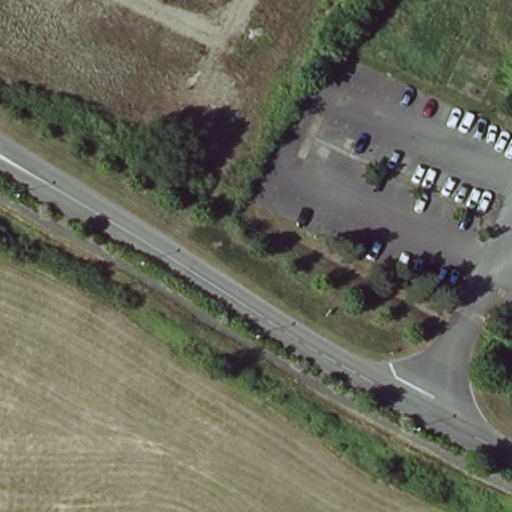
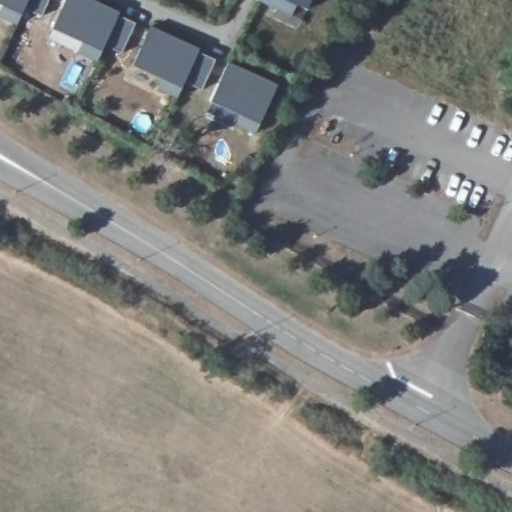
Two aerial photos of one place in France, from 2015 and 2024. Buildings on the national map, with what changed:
new [(41,17),(23,7),(16,24),(0,17),(0,8),(1,5),(0,5),(0,0),(49,0),(41,17)]
new [(66,0),(93,0),(120,11),(118,15),(135,22),(121,53),(103,45),(96,60),(78,53),(82,41),(53,28),(66,0)]
new [(258,0),(309,0),(303,12),(294,8),(290,16),(258,0)]
new [(151,26),(199,47),(197,51),(213,58),(201,90),(185,82),(177,96),(157,89),(161,78),(134,65),(151,26)]
new [(228,62),(276,84),(254,133),(236,124),(240,114),(211,101),(228,62)]

